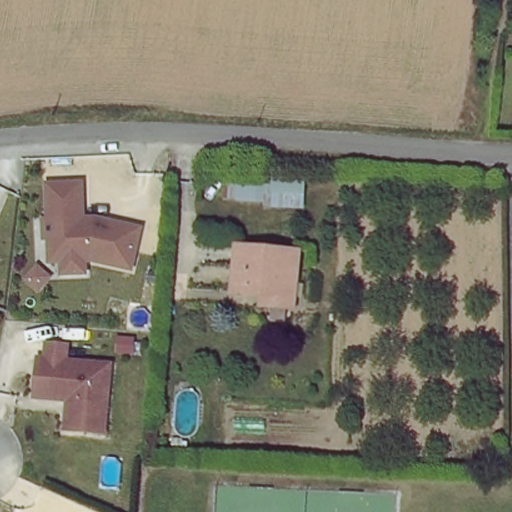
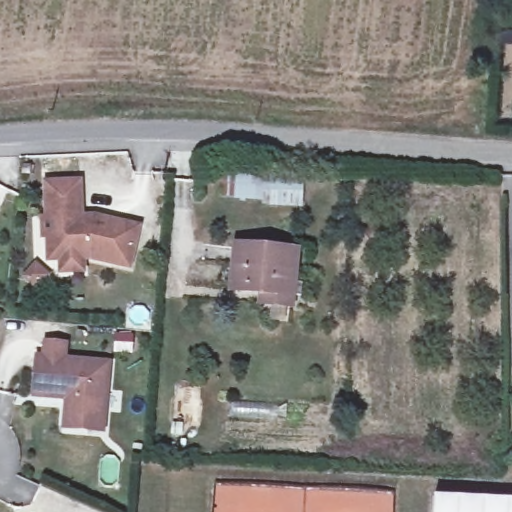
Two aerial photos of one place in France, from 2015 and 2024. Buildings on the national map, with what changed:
unchanged [(221,199),(221,172),(266,176),(281,176),(303,176),(304,191),(265,191),(263,202),(221,199)]
unchanged [(43,257),(43,232),(43,218),(43,180),(76,180),(76,216),(90,216),(134,227),(125,266),(85,257),(76,257),(77,269),(55,269),(55,257),(43,257)]
unchanged [(266,312),(266,296),(230,292),(236,250),(296,257),(291,299),(289,314),(266,312)]
unchanged [(82,427),(60,425),(63,396),(30,392),(35,354),(42,355),(43,340),(63,342),(62,357),(106,362),(100,415),(98,429),(82,427)]
new [(512,499),(512,512),(433,512),(434,498),(512,499)]

